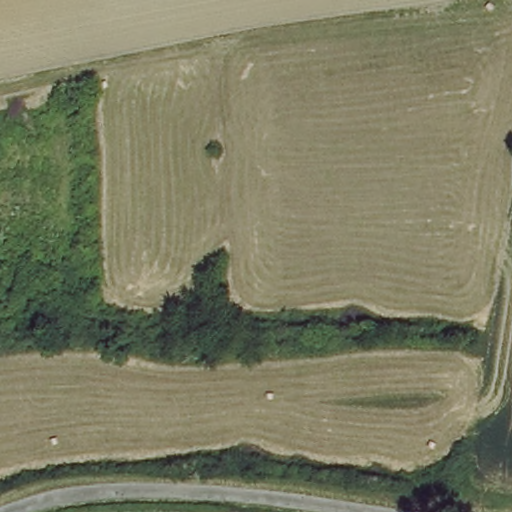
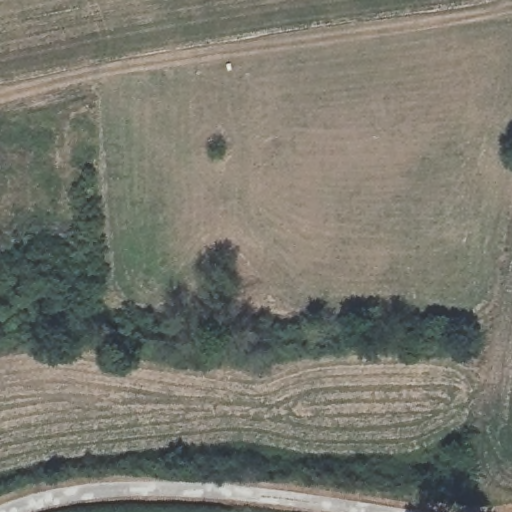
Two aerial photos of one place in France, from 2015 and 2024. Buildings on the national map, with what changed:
[]

